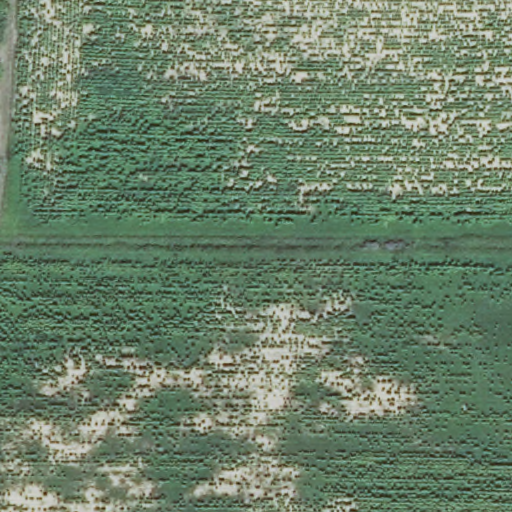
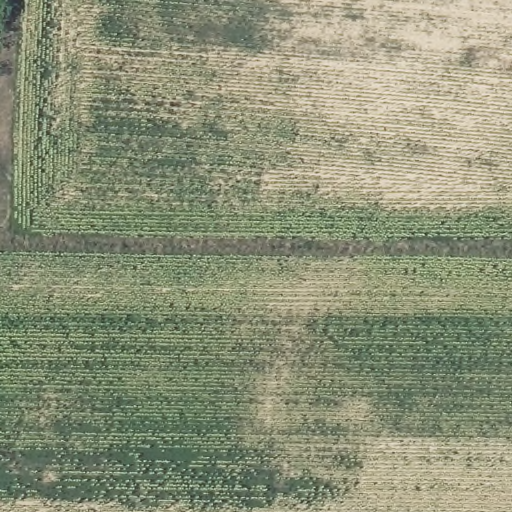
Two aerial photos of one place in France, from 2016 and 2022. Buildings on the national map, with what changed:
[]

